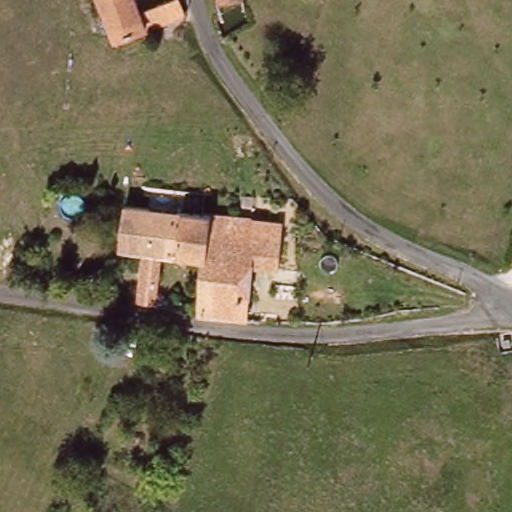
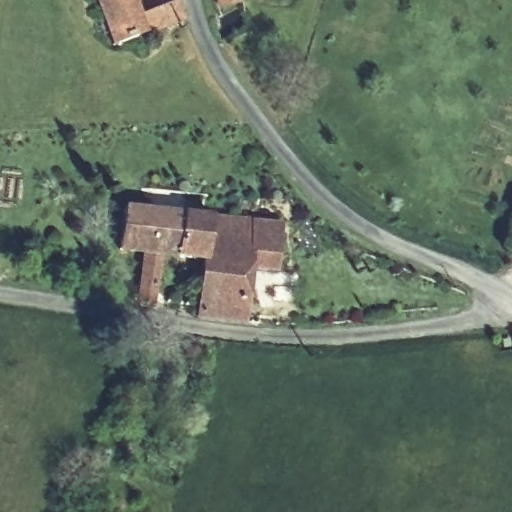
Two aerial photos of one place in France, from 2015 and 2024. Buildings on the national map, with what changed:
unchanged [(151,35),(121,46),(104,0),(138,0),(145,16),(184,4),(189,21),(151,35)]
unchanged [(221,3),(221,0),(244,0),(244,3),(221,3)]
unchanged [(260,215),(247,213),(247,198),(263,200),(262,215),(260,215)]
unchanged [(146,289),(151,255),(127,252),(132,210),(190,215),(184,259),(166,256),(160,291),(146,289)]
unchanged [(244,220),(242,236),(214,232),(210,262),(184,259),(190,215),(244,220)]
unchanged [(205,311),(210,262),(214,232),(242,236),(244,220),(259,222),(256,270),(254,324),(205,319),(205,311)]
unchanged [(256,270),(259,222),(289,225),(286,271),(256,270)]

